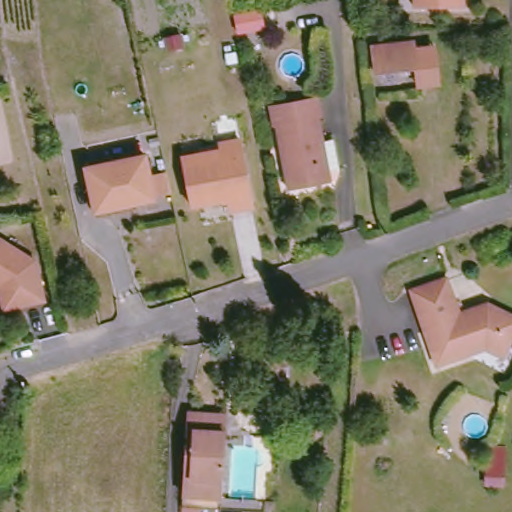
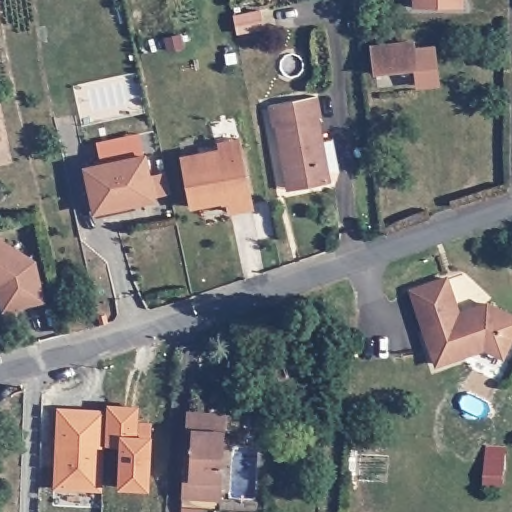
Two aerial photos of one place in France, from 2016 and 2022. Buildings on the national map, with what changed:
unchanged [(415,0),(462,0),(462,10),(415,10),(415,0)]
unchanged [(174,29),(177,42),(162,45),(160,32),(174,29)]
unchanged [(377,78),(374,52),(412,49),(414,74),(377,78)]
unchanged [(280,162),(274,131),(270,132),(265,111),(315,101),(320,121),(315,122),(320,144),(330,141),(337,172),(335,179),(329,181),(329,183),(292,191),(287,192),(280,162)]
unchanged [(185,162),(204,158),(240,152),(250,205),(227,209),(226,204),(212,206),(194,209),(185,162)]
unchanged [(140,160),(149,206),(119,212),(108,167),(140,160)]
unchanged [(94,217),(84,171),(108,167),(119,212),(94,217)]
unchanged [(9,291),(0,286),(0,242),(37,267),(44,305),(12,310),(9,291)]
unchanged [(432,362),(408,290),(446,276),(460,315),(473,311),(472,307),(487,303),(512,315),(512,325),(505,338),(499,352),(482,345),(432,362)]
new [(53,490),(57,408),(105,411),(106,404),(139,406),(138,422),(152,422),(151,436),(148,489),(117,487),(119,447),(104,446),(102,492),(53,490)]
unchanged [(222,497),(190,494),(190,475),(183,474),(187,425),(212,427),(214,417),(227,418),(222,495),(222,497)]

